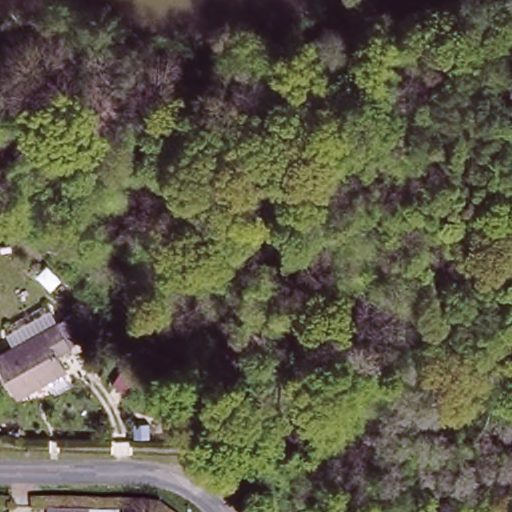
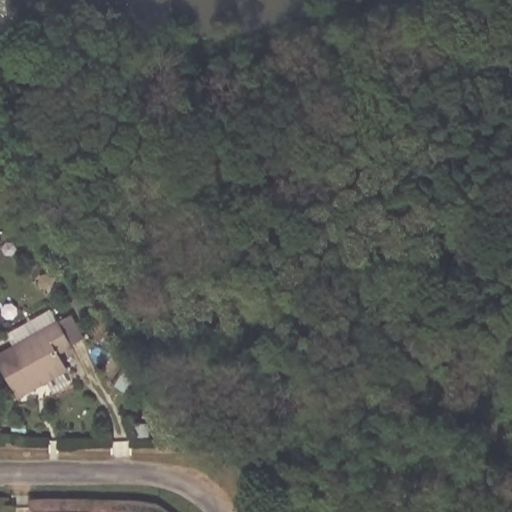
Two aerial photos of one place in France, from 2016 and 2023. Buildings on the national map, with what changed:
unchanged [(0,364),(0,350),(56,319),(69,342),(55,350),(65,366),(42,379),(17,394),(13,388),(0,364)]
unchanged [(120,511),(120,512),(50,512),(50,509),(120,511)]

